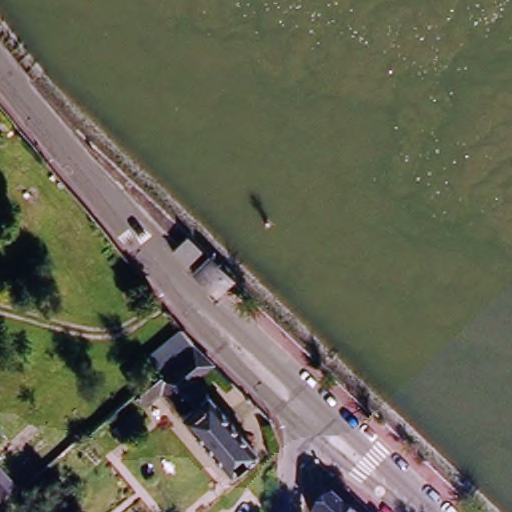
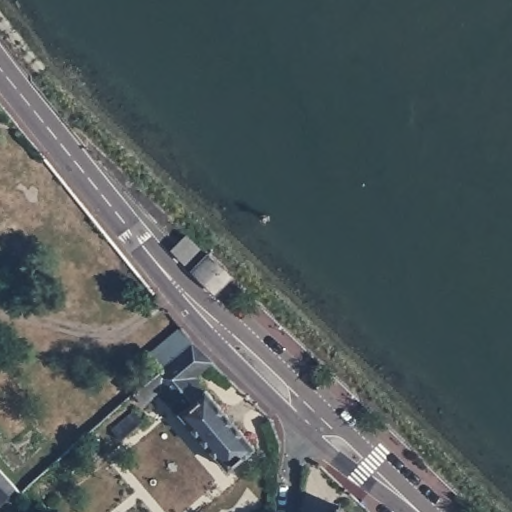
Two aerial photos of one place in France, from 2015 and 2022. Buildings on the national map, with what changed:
unchanged [(11,99),(0,106),(0,84),(11,99)]
unchanged [(189,235),(201,247),(197,250),(187,260),(176,249),(184,240),(189,235)]
unchanged [(212,250),(233,272),(226,279),(215,289),(194,268),(204,259),(212,250)]
unchanged [(197,373),(255,444),(227,466),(161,384),(143,400),(133,389),(160,366),(148,353),(182,322),(192,334),(193,337),(214,358),(197,373)]
unchanged [(127,436),(117,425),(141,404),(151,414),(127,436)]
unchanged [(5,496),(0,500),(0,490),(5,496)]
unchanged [(342,496),(358,512),(326,512),(342,496)]

